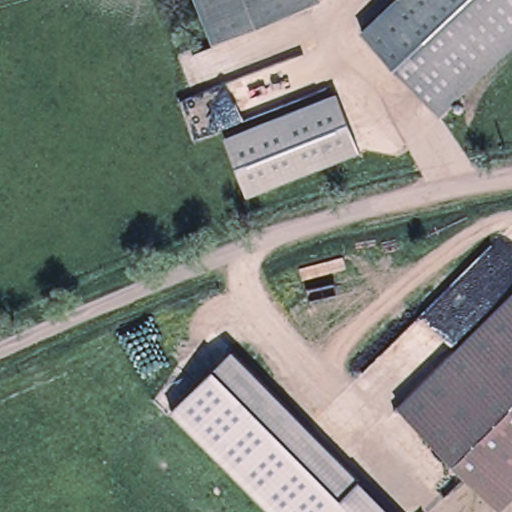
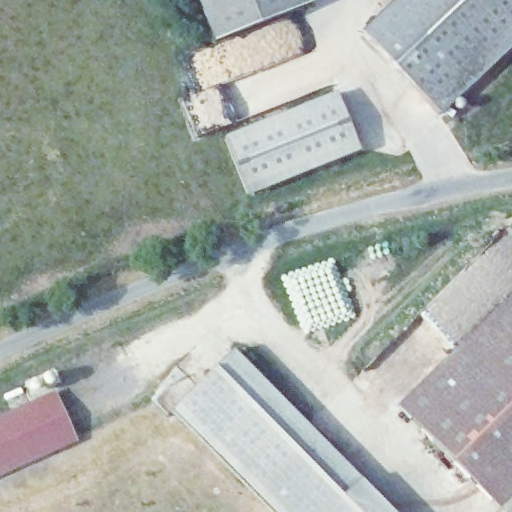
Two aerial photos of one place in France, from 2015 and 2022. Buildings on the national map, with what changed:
unchanged [(225,36),(211,0),(308,0),(309,2),(225,36)]
unchanged [(361,32),(395,0),(512,0),(512,42),(438,112),(361,32)]
unchanged [(356,150),(248,196),(223,137),(334,90),(356,150)]
unchanged [(500,507),(398,405),(512,295),(512,495),(500,507)]
unchanged [(234,351),(393,512),(273,512),(173,411),(234,351)]
new [(0,476),(0,416),(55,390),(77,440),(0,476)]

